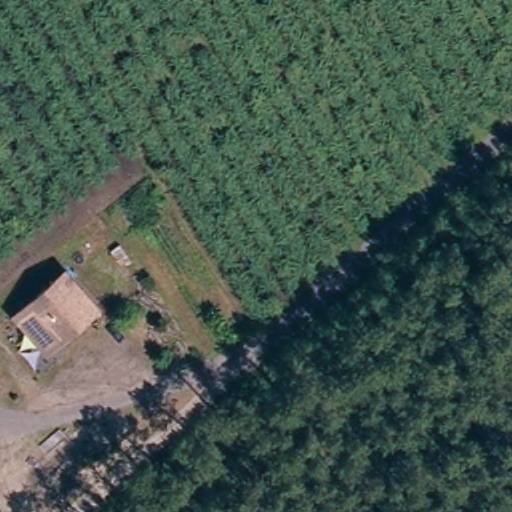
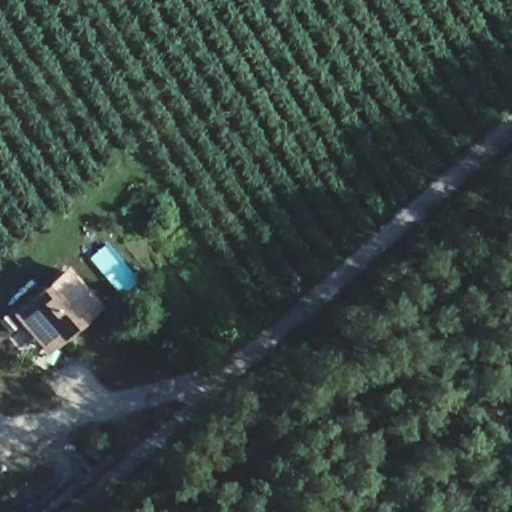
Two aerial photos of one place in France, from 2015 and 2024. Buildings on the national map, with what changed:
unchanged [(99,307),(56,353),(16,320),(65,276),(99,307)]

